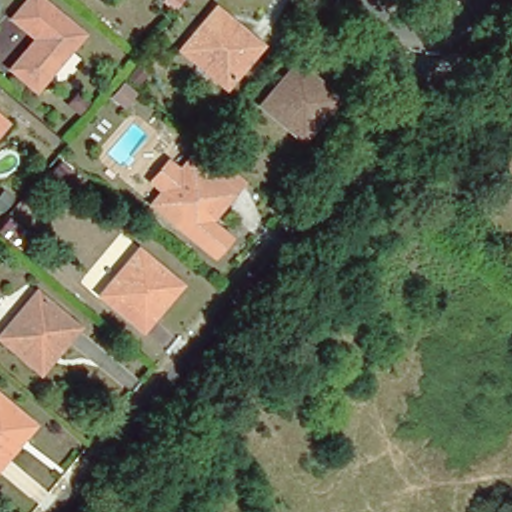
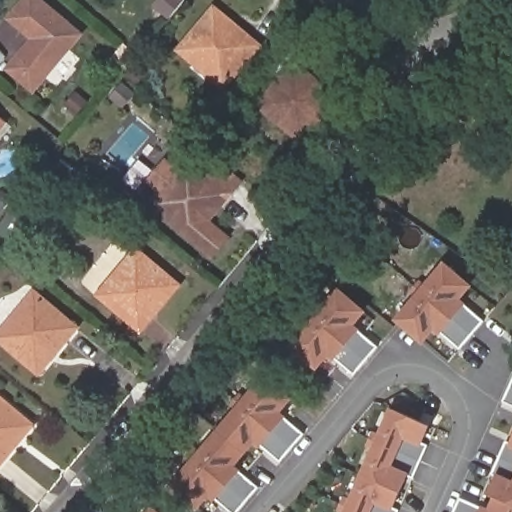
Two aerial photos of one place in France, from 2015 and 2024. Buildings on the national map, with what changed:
unchanged [(19,0),(48,0),(81,28),(34,84),(10,63),(35,33),(10,11),(19,0)]
unchanged [(180,43),(215,2),(259,39),(224,80),(213,71),(191,53),(180,43)]
unchanged [(262,105),(297,63),(307,71),(337,96),(330,104),(302,138),(262,105)]
unchanged [(0,129),(0,116),(6,121),(0,129)]
unchanged [(146,203),(154,194),(143,185),(164,159),(175,168),(184,158),(195,143),(197,144),(236,177),(225,191),(188,237),(146,203)]
unchanged [(13,202),(4,213),(0,210),(0,195),(1,193),(13,202)]
unchanged [(179,283),(142,328),(99,294),(109,282),(127,260),(136,248),(179,283)]
new [(398,319),(417,297),(409,291),(418,281),(425,287),(444,264),(469,285),(458,298),(484,320),(460,348),(434,327),(423,340),(398,319)]
unchanged [(35,366),(0,337),(0,323),(3,319),(21,298),(31,285),(73,320),(35,366)]
new [(293,346),(312,323),(304,317),(313,307),(320,313),(339,291),(364,312),(353,325),(379,347),(355,375),(329,353),(318,367),(293,346)]
new [(220,431),(239,409),(232,403),(240,392),(247,398),(266,376),(291,397),(280,410),(306,432),(282,460),(256,439),(245,452),(220,431)]
new [(502,401),(512,380),(512,406),(502,401)]
unchanged [(0,463),(0,396),(33,423),(0,463)]
new [(337,509),(342,497),(351,502),(375,449),(366,445),(371,433),(380,436),(392,409),(431,426),(423,443),(428,445),(414,479),(408,476),(394,508),(400,510),(399,512),(342,512),(337,509)]
new [(174,486),(192,464),(185,458),(194,448),(201,454),(220,431),(245,452),(234,465),(260,487),(239,512),(232,512),(210,494),(199,507),(174,486)]
new [(460,497),(490,511),(503,478),(493,473),(508,440),(512,442),(512,512),(454,512),(460,497)]
new [(153,510),(156,512),(152,512),(153,510)]

